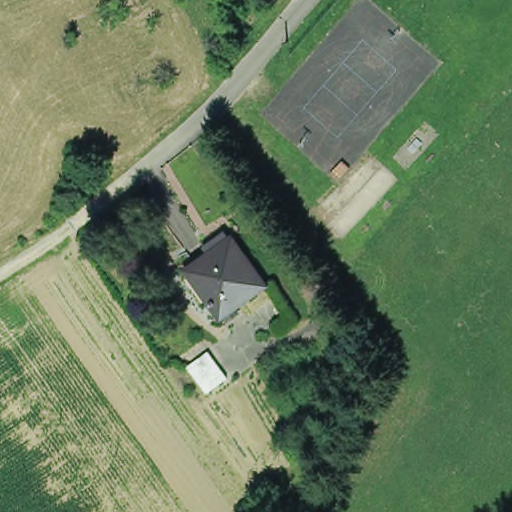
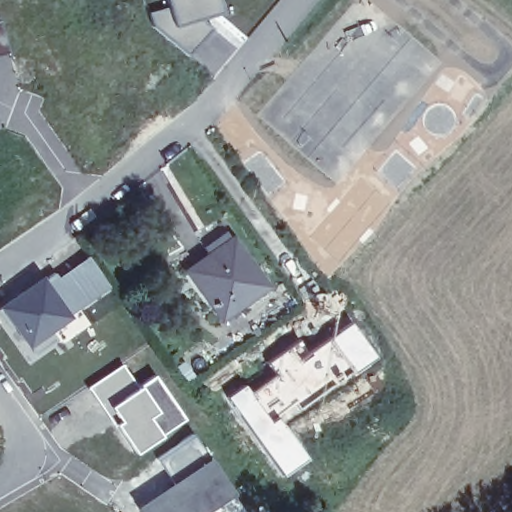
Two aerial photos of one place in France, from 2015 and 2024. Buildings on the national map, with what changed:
new [(168,0),(223,0),(225,12),(205,18),(215,28),(190,54),(154,24),(150,11),(169,6),(168,0)]
new [(0,22),(2,21),(11,51),(0,55),(0,22)]
unchanged [(217,326),(195,296),(184,281),(190,276),(205,265),(202,259),(223,243),(227,249),(260,294),(217,326)]
new [(55,273),(60,279),(90,256),(110,285),(48,324),(57,338),(34,352),(0,311),(55,273)]
new [(350,321),(375,355),(353,372),(326,337),(350,321)]
new [(274,373),(266,362),(300,338),(309,349),(326,337),(353,372),(300,412),(295,406),(279,417),(277,418),(275,416),(272,418),(250,390),(274,373)]
new [(120,361),(137,384),(154,372),(187,419),(134,454),(85,386),(120,361)]
new [(244,382),(250,390),(272,418),(275,416),(277,418),(279,417),(308,456),(300,462),(289,445),(286,447),(288,450),(275,459),(282,466),(277,470),(225,396),(244,382)]
new [(192,432),(209,454),(170,480),(155,458),(192,432)]
new [(209,454),(234,491),(203,512),(140,512),(135,504),(170,480),(209,454)]

